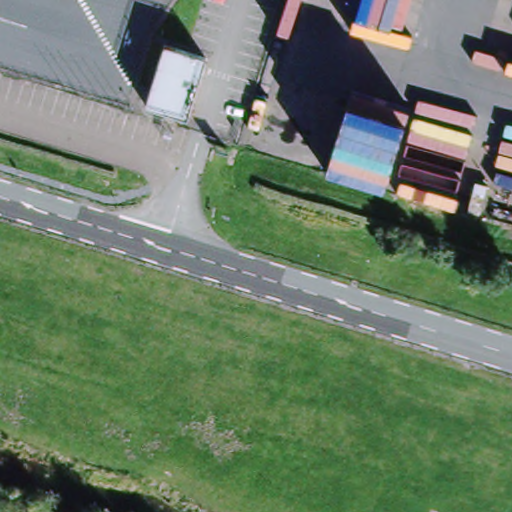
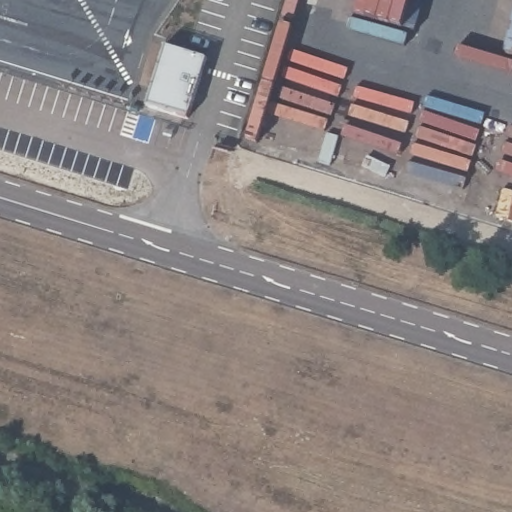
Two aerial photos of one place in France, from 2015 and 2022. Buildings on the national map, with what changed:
unchanged [(144,109),(164,47),(205,60),(186,121),(144,109)]

